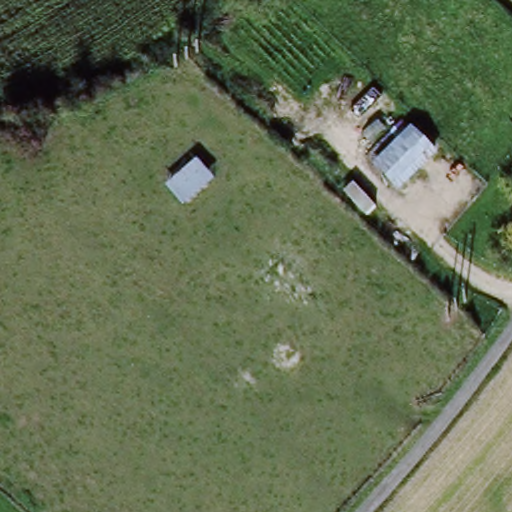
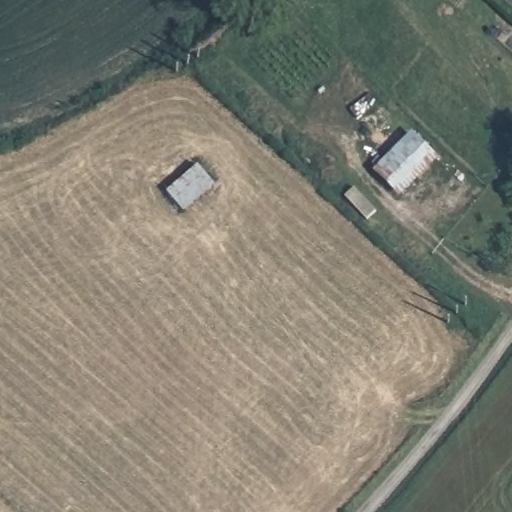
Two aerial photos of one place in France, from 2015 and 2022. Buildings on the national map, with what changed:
unchanged [(374,170),(412,128),(442,154),(402,190),(374,170)]
unchanged [(189,191),(172,175),(187,160),(203,176),(189,191)]

